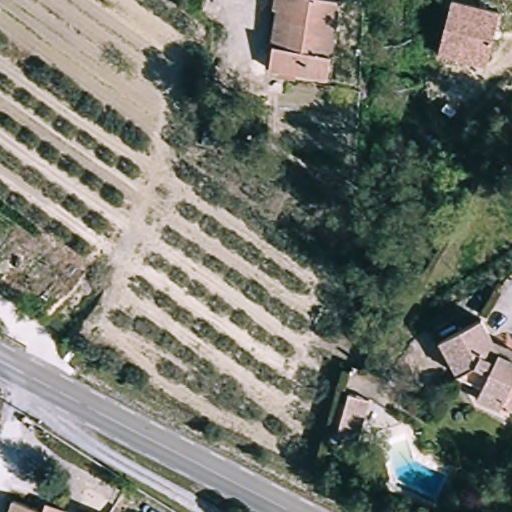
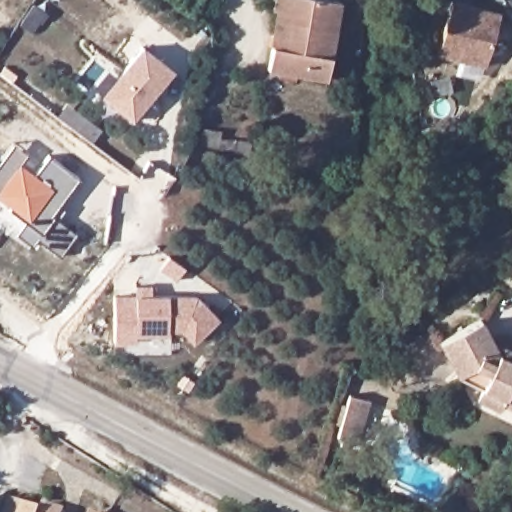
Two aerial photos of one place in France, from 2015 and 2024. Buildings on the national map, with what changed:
unchanged [(339,0),(333,74),(276,70),(277,45),(280,10),(275,9),(276,0),(339,0)]
unchanged [(500,14),(490,69),(440,59),(451,4),(500,14)]
new [(137,44),(168,68),(128,119),(98,95),(137,44)]
new [(35,175),(47,156),(78,179),(58,204),(65,209),(56,220),(76,235),(59,256),(37,238),(30,247),(15,234),(25,222),(8,208),(10,206),(0,199),(0,162),(13,144),(25,154),(18,162),(35,175)]
new [(180,264),(171,276),(155,264),(164,252),(180,264)]
new [(127,281),(143,281),(143,294),(127,294),(127,281)]
new [(106,293),(188,294),(210,318),(185,341),(172,328),(160,328),(160,333),(128,333),(128,340),(106,339),(106,293)]
unchanged [(498,376),(487,370),(467,382),(451,359),(488,334),(505,355),(512,359),(512,413),(487,399),(498,376)]
unchanged [(351,392),(371,397),(361,444),(340,438),(351,392)]
unchanged [(42,509),(47,500),(70,508),(68,512),(6,512),(11,498),(42,509)]
unchanged [(96,510),(102,512),(95,512),(96,510)]

